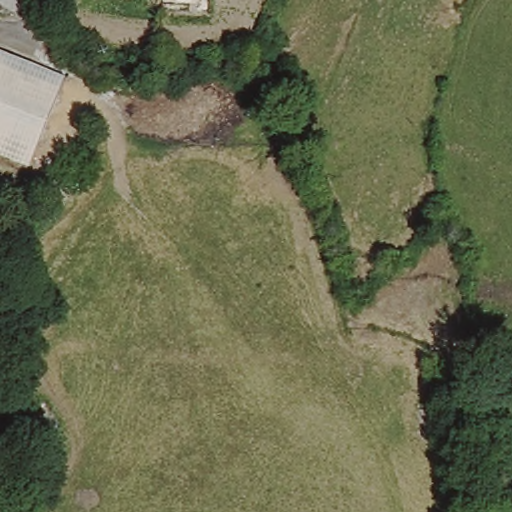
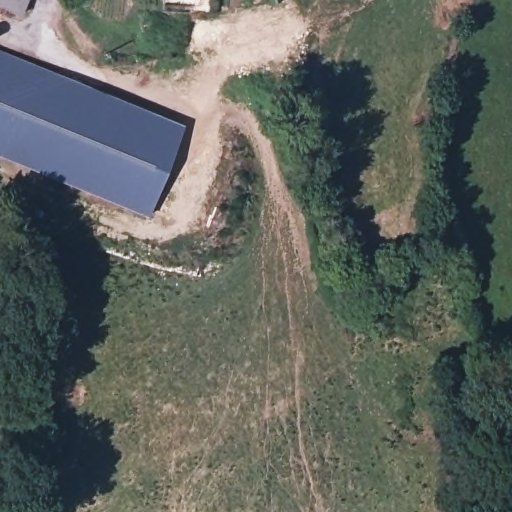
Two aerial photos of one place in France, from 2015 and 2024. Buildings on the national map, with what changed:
unchanged [(15,0),(20,0),(19,2),(15,0)]
unchanged [(150,2),(150,0),(204,0),(204,5),(150,2)]
unchanged [(0,70),(0,60),(12,64),(0,70)]
unchanged [(0,163),(0,70),(12,64),(70,86),(35,177),(0,163)]
new [(70,86),(73,79),(182,122),(147,213),(38,170),(70,86)]

